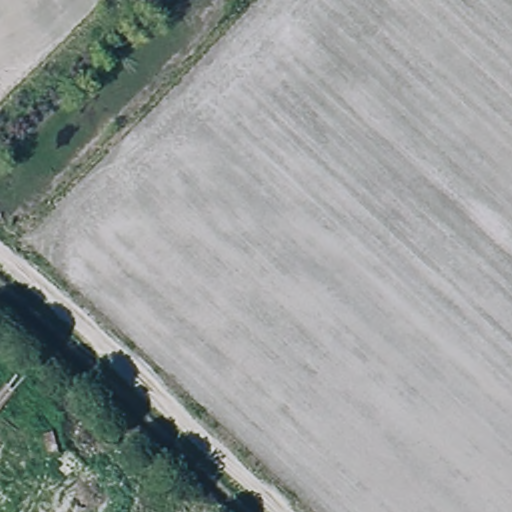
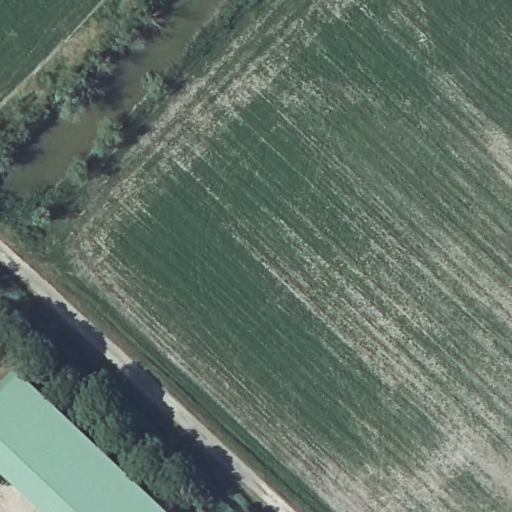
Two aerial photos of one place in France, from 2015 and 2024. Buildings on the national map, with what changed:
new [(13,368),(164,512),(40,512),(0,474),(0,382),(13,368)]

